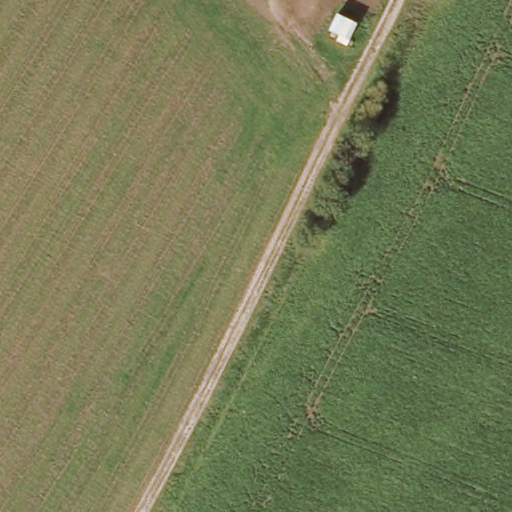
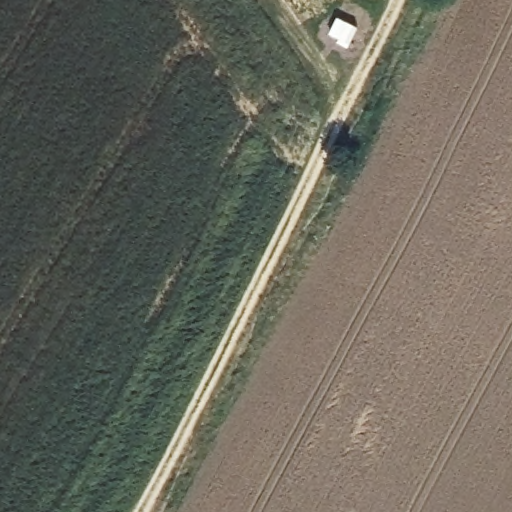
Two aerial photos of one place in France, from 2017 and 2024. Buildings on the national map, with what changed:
unchanged [(348,49),(328,39),(340,12),(363,23),(348,49)]

